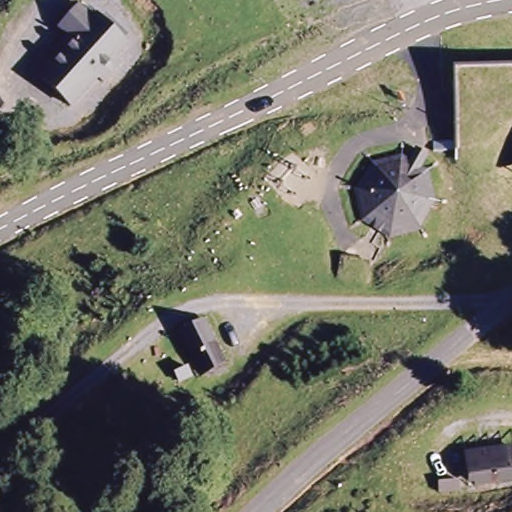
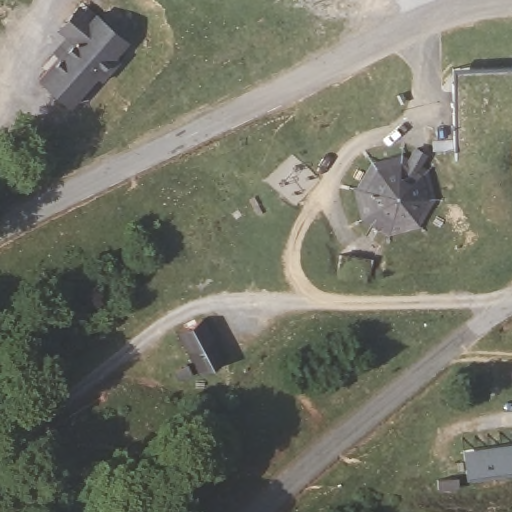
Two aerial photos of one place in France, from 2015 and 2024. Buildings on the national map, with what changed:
unchanged [(71,108),(34,75),(67,40),(52,25),(72,8),(88,18),(96,12),(132,42),(71,108)]
unchanged [(512,127),(492,131),(470,147),(455,150),(452,68),(512,66),(512,127)]
unchanged [(395,240),(367,227),(352,206),(355,181),(370,162),(396,155),(406,155),(411,150),(427,157),(424,169),(435,187),(438,210),(421,231),(395,240)]
unchanged [(172,327),(199,317),(227,363),(201,374),(172,327)]
unchanged [(464,450),(512,443),(512,478),(468,485),(464,450)]

